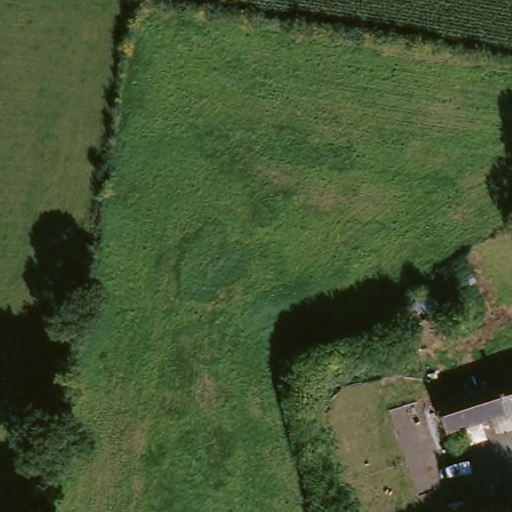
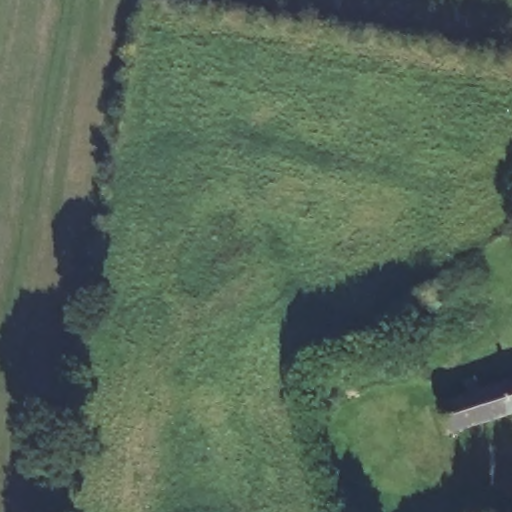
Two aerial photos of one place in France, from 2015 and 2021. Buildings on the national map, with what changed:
unchanged [(471,422),(449,428),(439,396),(512,375),(512,410),(471,422)]

